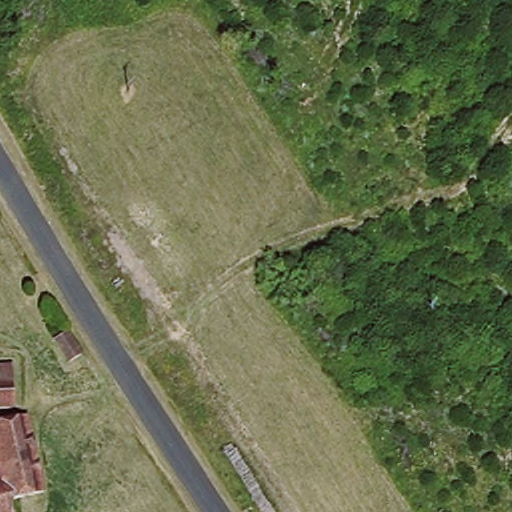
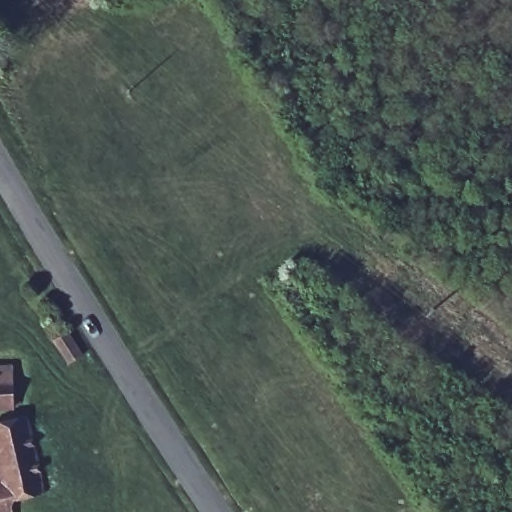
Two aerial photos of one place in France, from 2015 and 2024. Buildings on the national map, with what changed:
unchanged [(54,348),(71,338),(83,359),(66,367),(54,348)]
unchanged [(12,413),(0,412),(0,374),(12,375),(12,413)]
unchanged [(0,447),(0,427),(27,421),(45,496),(10,504),(12,512),(0,512),(0,477),(7,475),(0,447)]

